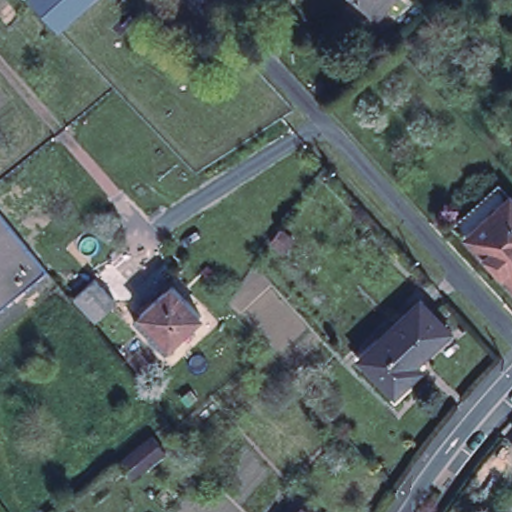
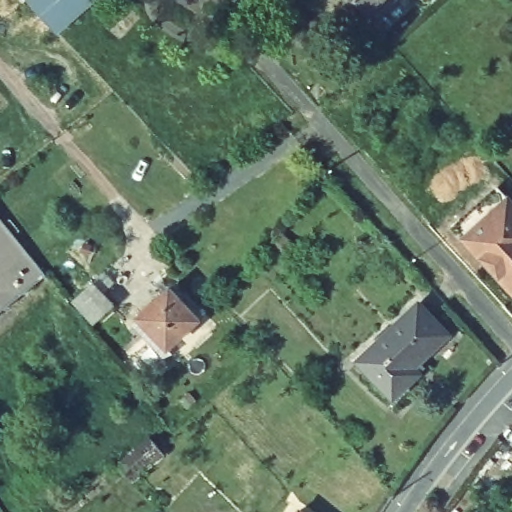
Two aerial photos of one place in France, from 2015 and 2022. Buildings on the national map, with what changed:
unchanged [(30,0),(93,0),(57,31),(30,0)]
unchanged [(357,0),(390,0),(374,16),(357,0)]
unchanged [(510,289),(480,254),(484,251),(467,232),(486,215),(483,212),(502,195),(512,207),(512,287),(510,289)]
unchanged [(47,275),(0,314),(0,217),(47,275)]
unchanged [(96,283),(116,305),(95,324),(75,300),(96,283)]
unchanged [(165,353),(137,319),(145,312),(175,283),(204,314),(173,343),(179,350),(165,353)]
unchanged [(418,374),(394,397),(359,361),(418,303),(447,333),(419,360),(425,367),(418,374)]
unchanged [(149,436),(152,434),(165,449),(132,477),(118,459),(149,436)]
unchanged [(144,469),(158,486),(149,494),(135,477),(144,469)]
unchanged [(309,512),(297,512),(301,507),(309,512)]

